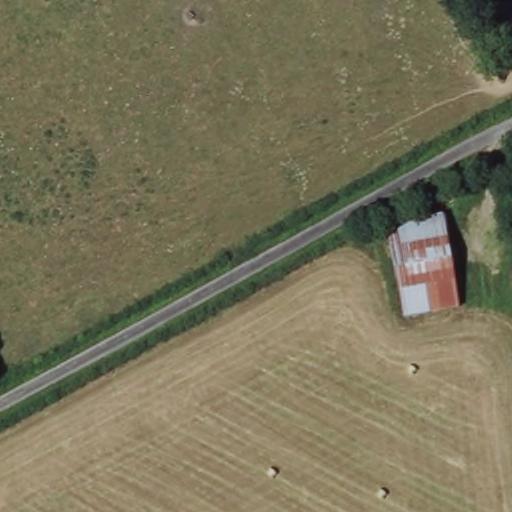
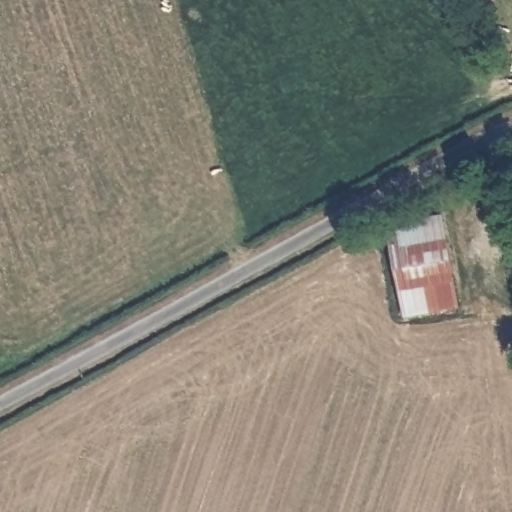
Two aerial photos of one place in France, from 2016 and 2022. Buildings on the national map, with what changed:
unchanged [(391,216),(445,210),(456,305),(401,311),(391,216)]

